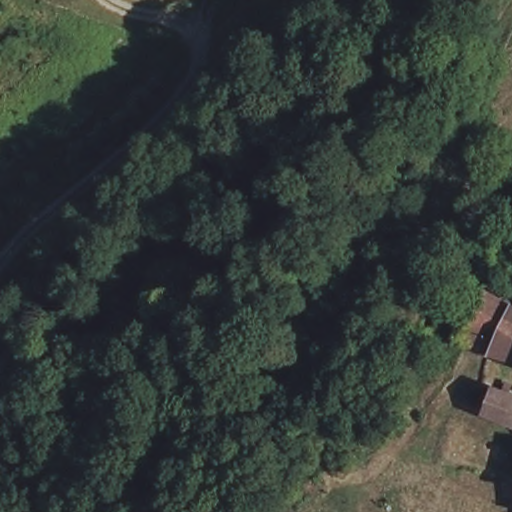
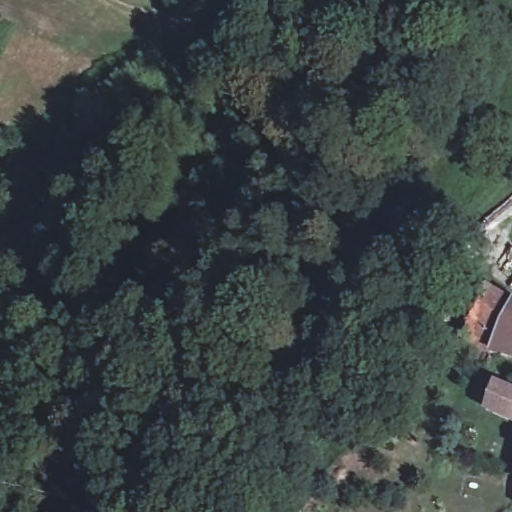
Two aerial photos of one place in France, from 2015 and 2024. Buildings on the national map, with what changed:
unchanged [(491,265),(509,244),(512,241),(512,282),(491,265)]
unchanged [(502,305),(511,310),(494,348),(490,355),(489,357),(489,359),(480,353),(461,341),(484,295),(502,305)]
unchanged [(512,311),(512,359),(509,357),(494,348),(511,310),(512,311)]
unchanged [(491,416),(492,413),(476,407),(485,384),(501,390),(512,395),(512,424),(491,416)]

